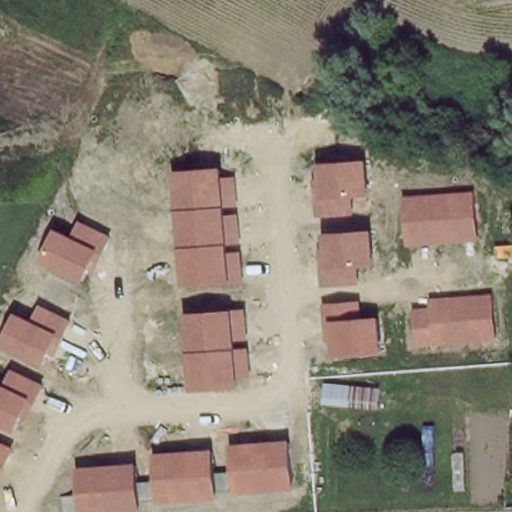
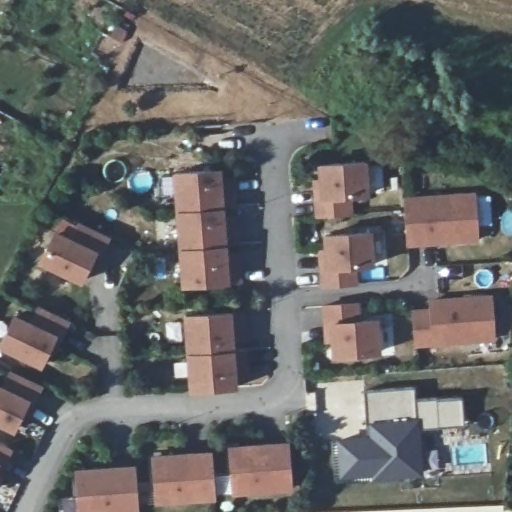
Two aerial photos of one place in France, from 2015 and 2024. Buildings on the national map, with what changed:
unchanged [(368,160),(370,195),(353,195),(355,214),(320,215),(315,164),(368,160)]
unchanged [(174,170),(222,167),(223,179),(235,178),(238,205),(224,206),(225,216),(238,215),(239,243),(227,245),(228,253),(240,251),(242,282),(230,283),(181,285),(174,170)]
unchanged [(476,191),(480,241),(410,245),(405,196),(476,191)]
unchanged [(54,226),(74,235),(81,221),(114,236),(95,273),(86,268),(79,283),(38,263),(54,226)]
unchanged [(373,232),(376,265),(358,265),(360,285),(324,286),(323,233),(373,232)]
unchanged [(495,295),(499,340),(416,347),(413,311),(432,310),(430,298),(495,295)]
unchanged [(361,301),(364,316),(379,315),(382,351),(332,353),(331,343),(325,343),(322,302),(361,301)]
unchanged [(54,355),(46,350),(39,365),(0,348),(0,336),(12,313),(30,321),(39,305),(70,319),(54,355)]
unchanged [(185,314),(232,310),(244,309),(245,341),(235,341),(236,350),(246,349),(248,376),(238,378),(239,388),(189,391),(185,314)]
unchanged [(43,382),(27,417),(20,413),(13,430),(0,424),(0,383),(2,384),(10,366),(43,382)]
demolished [(326,368),(385,373),(382,411),(323,403),(326,368)]
new [(366,436),(364,390),(413,386),(414,400),(462,397),(462,425),(420,428),(423,476),(372,480),(372,476),(338,478),(336,438),(366,436)]
unchanged [(288,441),(292,490),(235,493),(229,444),(288,441)]
unchanged [(0,473),(0,442),(12,447),(0,473)]
unchanged [(210,450),(215,498),(155,502),(151,453),(210,450)]
unchanged [(79,512),(76,468),(135,464),(140,512),(79,512)]

